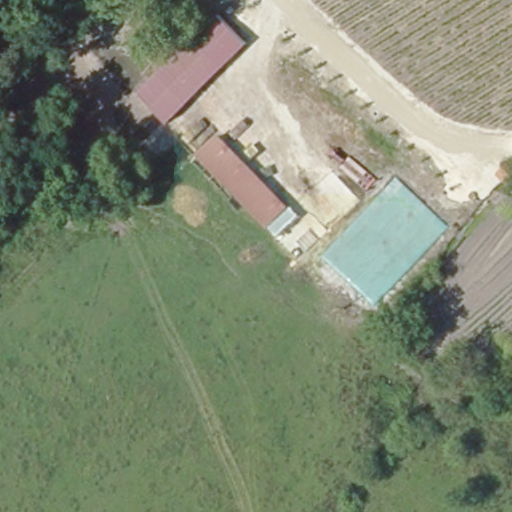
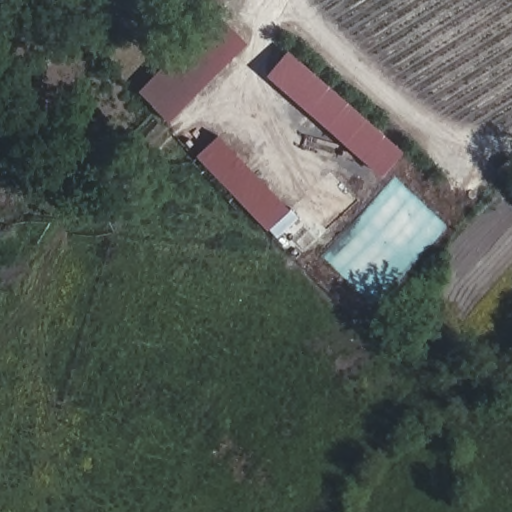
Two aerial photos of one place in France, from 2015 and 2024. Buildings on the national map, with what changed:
unchanged [(171,124),(142,93),(218,15),(249,45),(171,124)]
new [(265,77),(289,51),(405,152),(382,179),(265,77)]
unchanged [(270,231),(199,158),(219,137),(292,211),(270,231)]

